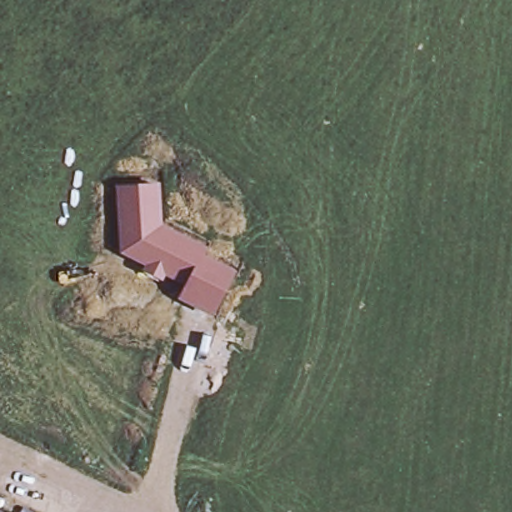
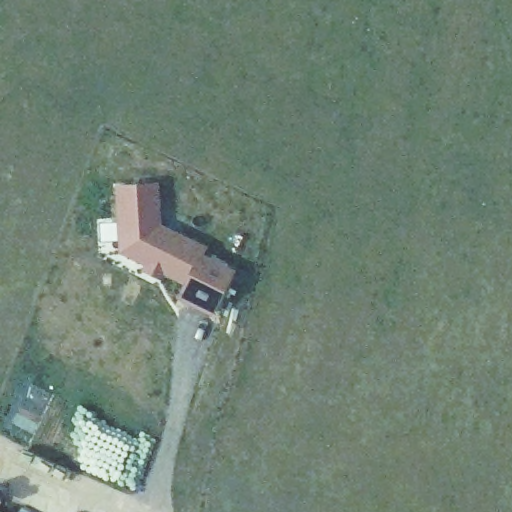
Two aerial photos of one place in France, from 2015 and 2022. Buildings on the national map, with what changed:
unchanged [(213,315),(177,297),(183,283),(120,250),(117,185),(162,182),(163,225),(208,247),(205,255),(235,270),(213,315)]
unchanged [(2,512),(0,512),(0,511),(2,512)]

